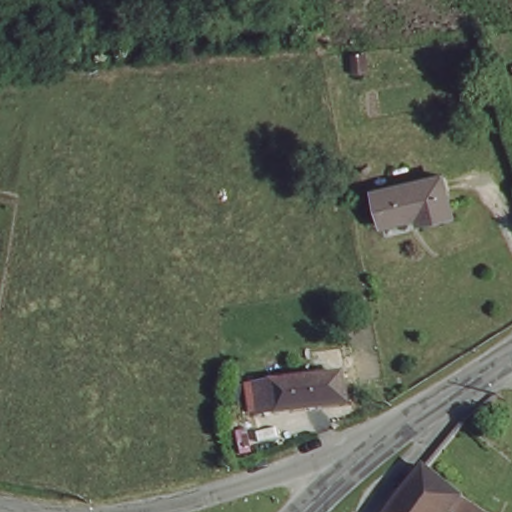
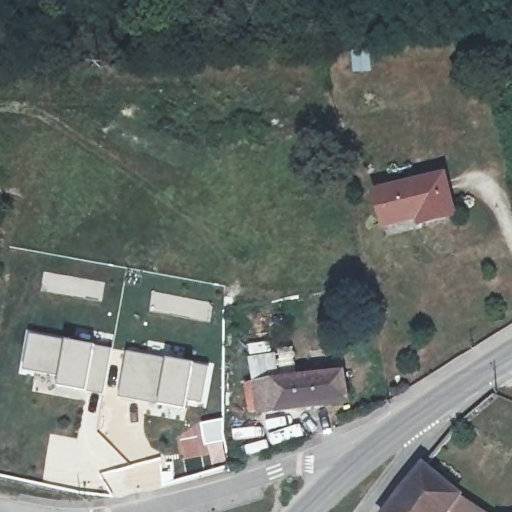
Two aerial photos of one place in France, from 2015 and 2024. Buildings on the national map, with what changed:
unchanged [(454,215),(416,223),(414,216),(382,222),(372,189),(440,174),(454,215)]
new [(104,395),(87,392),(59,386),(60,377),(23,369),(30,334),(67,341),(95,346),(112,349),(104,395)]
new [(209,367),(202,403),(187,400),(186,410),(159,405),(119,397),(126,352),(209,367)]
unchanged [(340,369),(345,396),(278,410),(255,414),(254,385),(274,381),(340,369)]
unchanged [(429,460),(490,512),(388,512),(429,460)]

